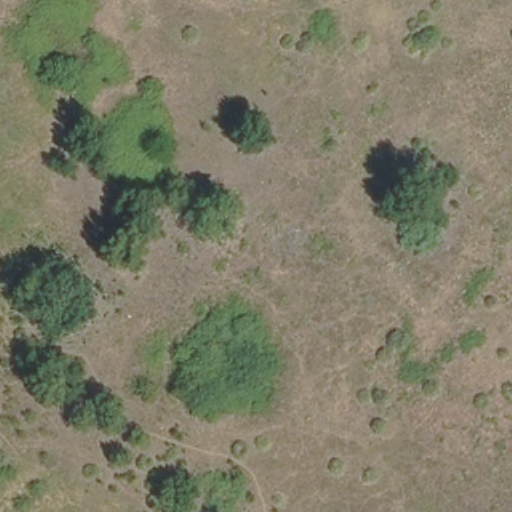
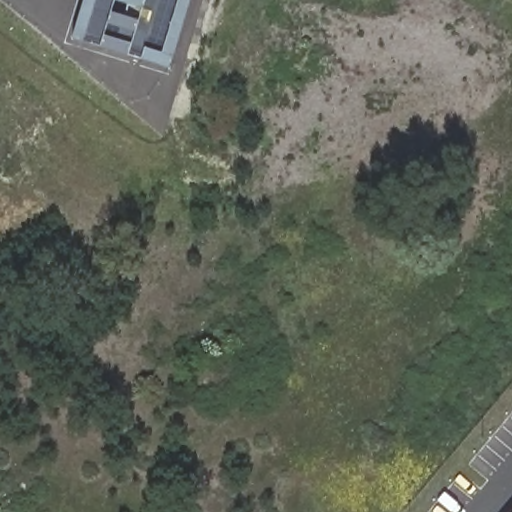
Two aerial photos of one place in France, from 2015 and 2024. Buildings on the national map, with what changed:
new [(171,70),(74,41),(86,0),(192,0),(171,70)]

